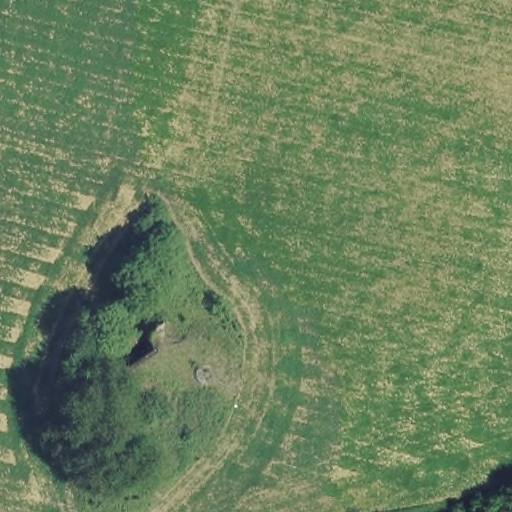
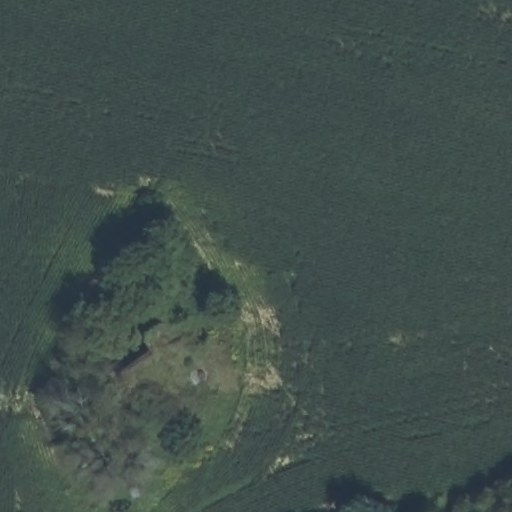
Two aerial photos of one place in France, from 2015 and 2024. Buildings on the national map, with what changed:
unchanged [(178,440),(104,383),(148,350),(155,308),(233,342),(178,440)]

